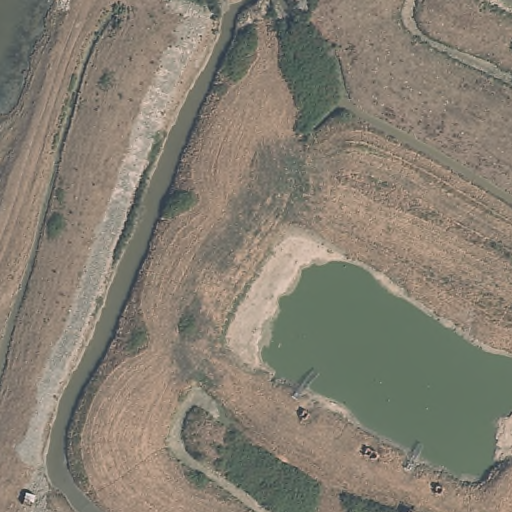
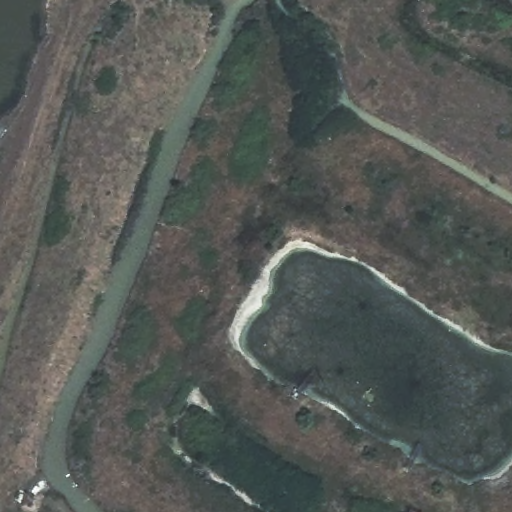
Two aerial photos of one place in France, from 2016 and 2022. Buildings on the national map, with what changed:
unchanged [(23,504),(28,494),(40,495),(34,507),(23,504)]

